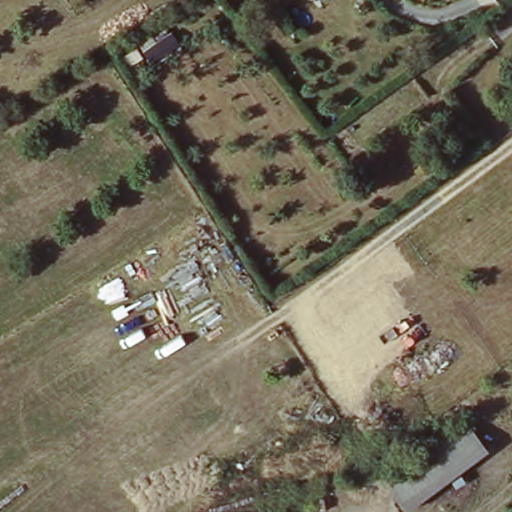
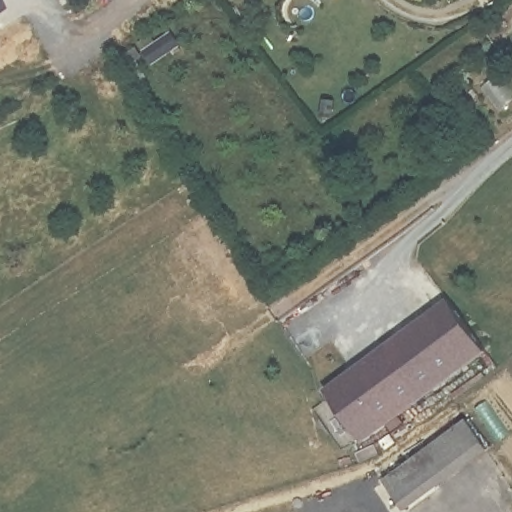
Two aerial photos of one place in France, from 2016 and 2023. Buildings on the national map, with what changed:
new [(365,446),(324,393),(447,298),(487,353),(365,446)]
unchanged [(495,459),(421,512),(407,512),(383,482),(469,421),(495,459)]

